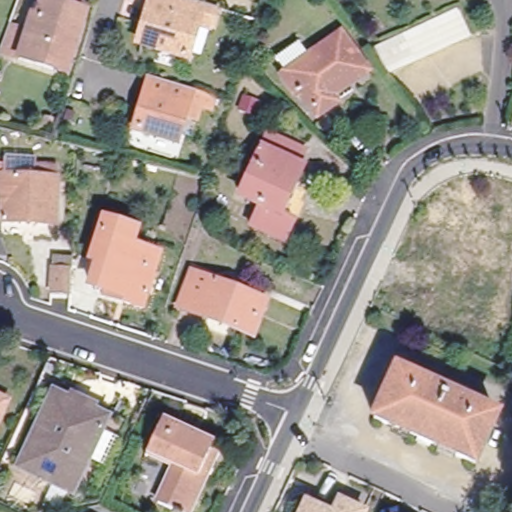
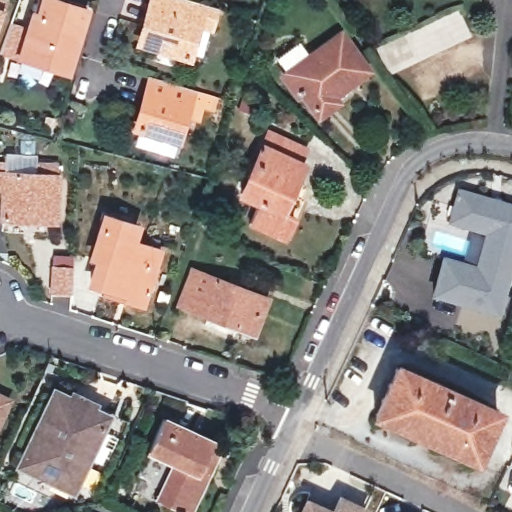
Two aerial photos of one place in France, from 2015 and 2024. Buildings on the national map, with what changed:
new [(0,0),(6,0),(0,19),(0,0)]
unchanged [(64,0),(85,7),(84,13),(68,70),(27,59),(19,57),(33,11),(40,14),(44,2),(44,0),(64,0)]
unchanged [(188,59),(141,45),(146,26),(151,9),(157,10),(161,0),(189,0),(217,8),(211,26),(198,22),(188,59)]
unchanged [(392,74),(383,52),(463,15),(473,37),(392,74)]
unchanged [(369,65),(334,91),(338,98),(322,110),(305,89),(300,92),(285,74),(274,57),(301,36),(312,52),(342,29),(369,65)]
unchanged [(177,142),(135,129),(149,78),(192,91),(177,142)]
unchanged [(260,111),(247,109),(250,95),(263,97),(260,111)]
unchanged [(283,242),(271,237),(254,230),(263,209),(225,192),(236,169),(252,177),(269,139),(303,155),(297,169),(302,172),(281,216),(293,222),(283,242)]
unchanged [(11,187),(1,185),(1,160),(13,161),(13,172),(42,173),(43,162),(64,164),(60,220),(10,216),(11,187)]
demolished [(85,202),(87,168),(116,172),(114,206),(85,202)]
new [(442,256),(474,264),(482,232),(449,222),(460,185),(512,202),(512,267),(498,315),(431,297),(442,256)]
demolished [(510,253),(460,237),(458,242),(439,236),(445,220),(449,221),(456,196),(487,205),(486,209),(512,217),(512,248),(510,253)]
unchanged [(108,280),(97,276),(105,254),(98,251),(113,211),(132,217),(143,221),(139,236),(166,245),(148,300),(129,293),(106,287),(108,280)]
unchanged [(51,287),(52,262),(74,263),(72,290),(51,287)]
unchanged [(265,300),(250,335),(180,304),(196,271),(265,300)]
demolished [(416,298),(397,290),(402,276),(422,285),(416,298)]
unchanged [(498,410),(476,459),(376,413),(397,363),(498,410)]
unchanged [(21,465),(58,390),(76,398),(78,394),(113,411),(106,425),(74,491),(21,465)]
unchanged [(0,407),(0,401),(2,402),(0,407)]
unchanged [(148,447),(163,416),(212,438),(205,454),(213,458),(189,512),(159,497),(169,475),(173,477),(179,463),(148,447)]
unchanged [(339,497),(365,509),(364,512),(331,512),(339,497)]
new [(511,500),(512,498),(512,500),(511,500)]
unchanged [(303,506),(318,512),(300,512),(303,506)]

